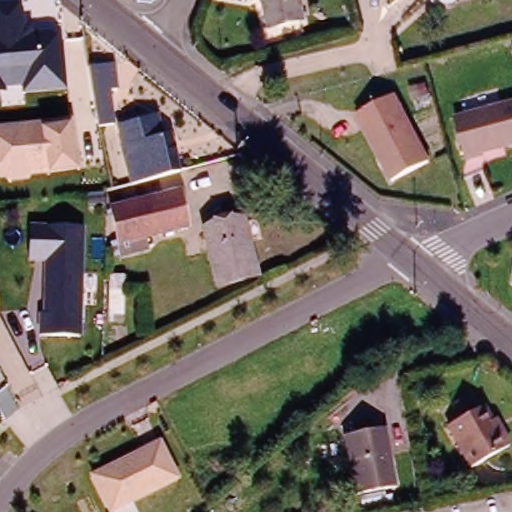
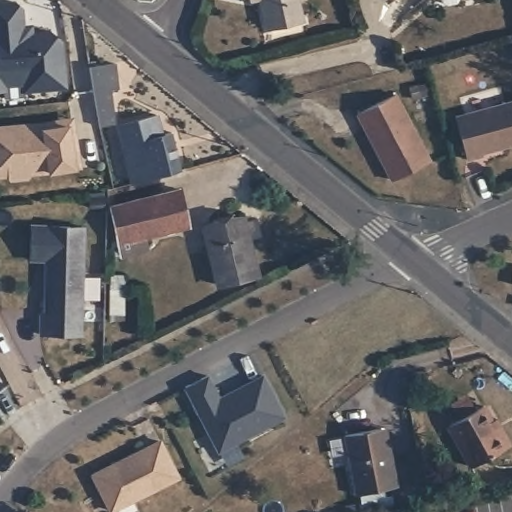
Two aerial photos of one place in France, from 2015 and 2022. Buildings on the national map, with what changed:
unchanged [(299,17),(265,25),(260,0),(295,0),(299,17)]
unchanged [(23,9),(25,36),(54,33),(60,40),(65,90),(20,94),(20,86),(4,88),(5,92),(0,92),(0,4),(17,3),(23,9)]
unchanged [(109,63),(113,87),(103,89),(107,130),(96,132),(83,67),(109,63)]
unchanged [(395,94),(429,161),(392,180),(357,113),(395,94)]
unchanged [(455,115),(512,101),(512,142),(503,145),(503,142),(497,143),(497,146),(480,151),(480,153),(465,157),(455,115)]
unchanged [(79,172),(30,176),(30,181),(7,183),(6,179),(0,179),(0,124),(72,115),(79,172)]
unchanged [(175,170),(127,182),(117,146),(112,125),(149,115),(155,136),(165,133),(175,170)]
unchanged [(148,234),(151,247),(123,254),(111,206),(177,188),(187,224),(148,234)]
unchanged [(200,225),(242,215),(242,217),(254,214),(258,232),(246,235),(256,275),(214,285),(200,225)]
unchanged [(78,227),(75,335),(35,334),(35,314),(40,314),(40,268),(45,268),(45,260),(25,259),(25,225),(78,227)]
new [(207,376),(219,399),(262,377),(284,418),(217,452),(185,387),(207,376)]
unchanged [(487,420),(490,418),(495,427),(505,444),(467,465),(443,424),(478,405),(487,420)]
unchanged [(352,493),(341,434),(377,427),(381,426),(386,453),(392,485),(352,493)]
unchanged [(87,475),(154,442),(172,477),(105,511),(87,475)]

